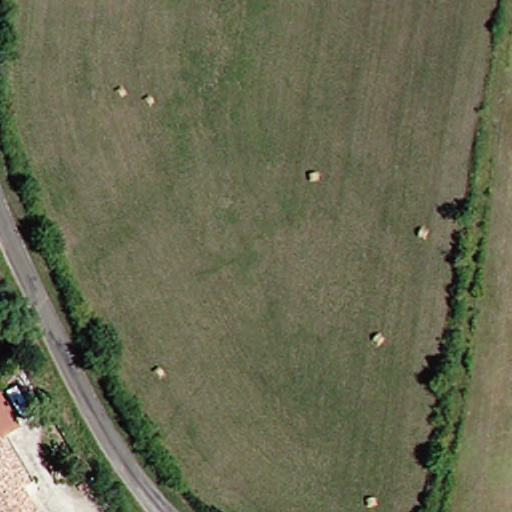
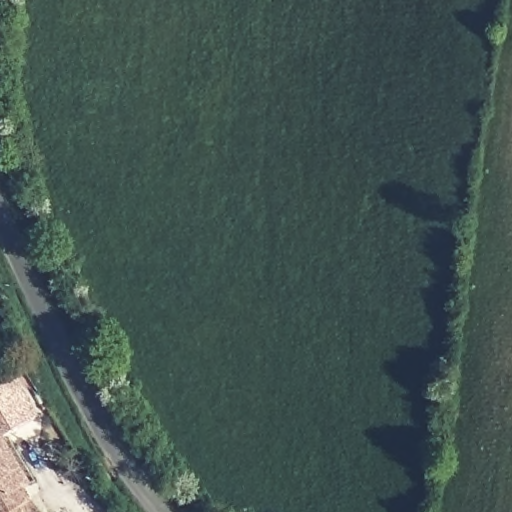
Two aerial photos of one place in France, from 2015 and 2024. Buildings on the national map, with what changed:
unchanged [(2,440),(30,481),(21,488),(37,512),(0,512),(0,412),(13,431),(2,440)]

